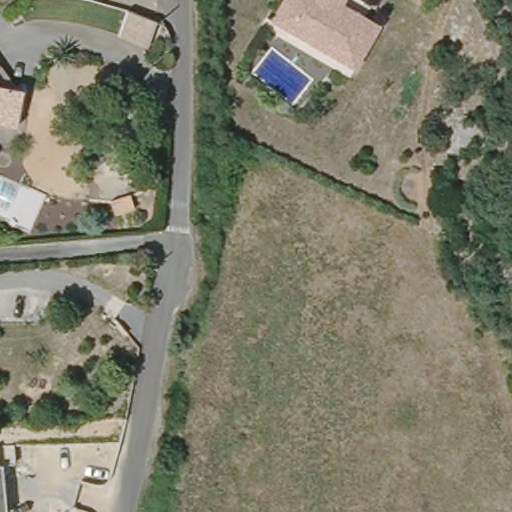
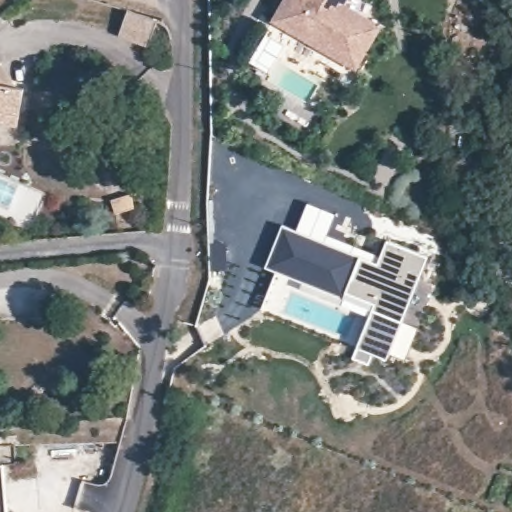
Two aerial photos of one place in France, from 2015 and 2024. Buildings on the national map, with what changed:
unchanged [(272,25),(283,0),(347,0),(344,6),(376,25),(354,66),(272,25)]
unchanged [(114,35),(125,12),(159,26),(150,48),(114,35)]
unchanged [(22,89),(17,125),(0,122),(0,85),(22,89)]
unchanged [(129,195),(133,208),(115,214),(112,201),(129,195)]
new [(387,361),(356,347),(371,309),(344,298),(342,304),(299,288),(302,282),(265,266),(281,225),(365,259),(369,252),(380,257),(386,240),(427,255),(387,361)]
new [(13,443),(15,463),(0,464),(0,443),(13,443)]
unchanged [(0,512),(0,496),(2,512),(0,512)]

